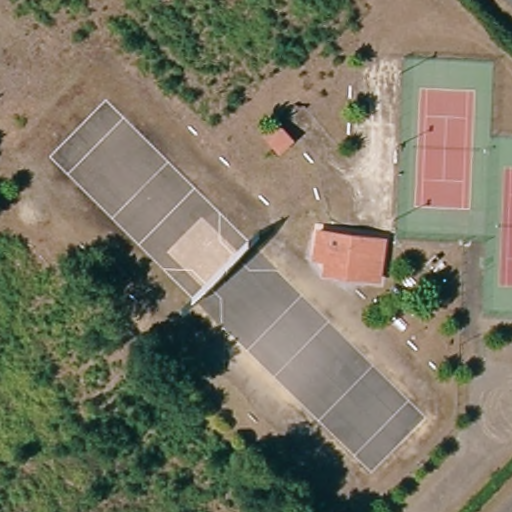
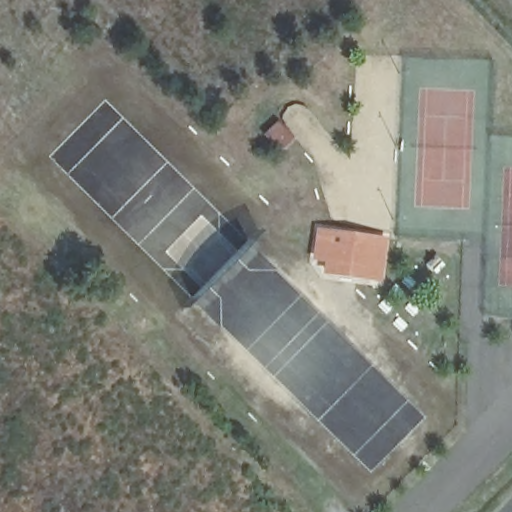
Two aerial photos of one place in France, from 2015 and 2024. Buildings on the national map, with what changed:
unchanged [(332,267),(332,256),(333,252),(320,251),(322,230),(387,235),(386,260),(385,272),(332,267)]

